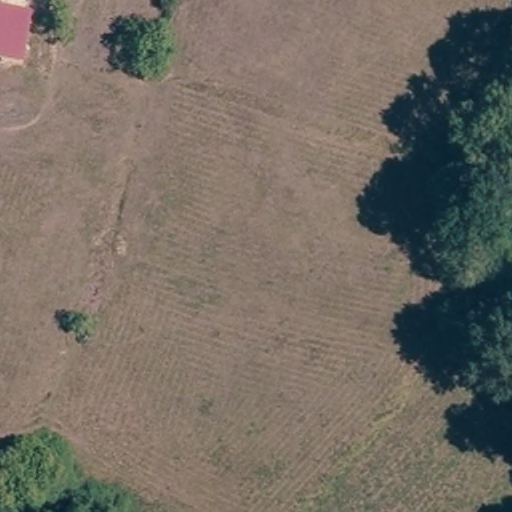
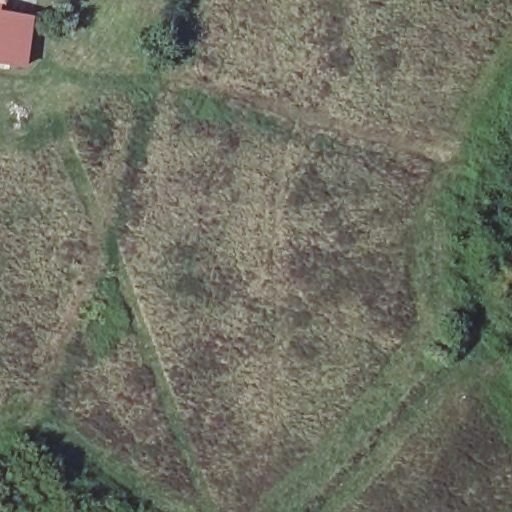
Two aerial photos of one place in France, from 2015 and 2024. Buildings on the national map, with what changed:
unchanged [(30,22),(22,68),(0,64),(0,16),(30,22)]

